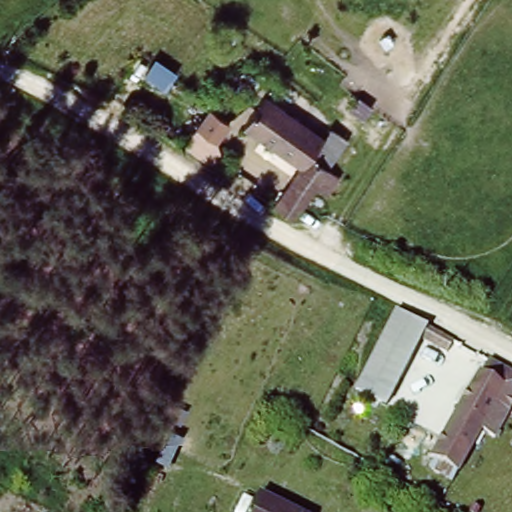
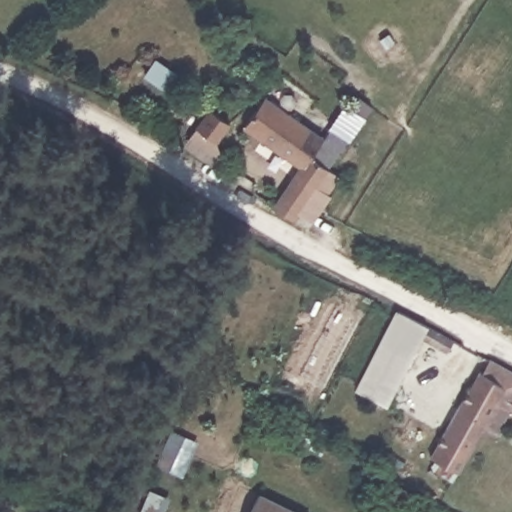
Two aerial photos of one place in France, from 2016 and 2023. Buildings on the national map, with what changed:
unchanged [(280,210),(276,207),(305,164),(246,125),(271,83),(288,94),(281,105),(296,115),(325,133),(316,148),(311,154),(341,172),(327,193),(321,189),(316,186),(296,220),(280,210)]
unchanged [(208,107),(228,120),(211,147),(220,154),(212,167),(182,148),(208,107)]
unchanged [(449,356),(418,339),(384,405),(354,391),(394,309),(457,340),(449,356)]
unchanged [(478,427),(449,476),(428,465),(434,455),(429,453),(485,355),(512,370),(512,402),(493,436),(478,427)]
unchanged [(246,512),(254,494),(292,512),(246,512)]

